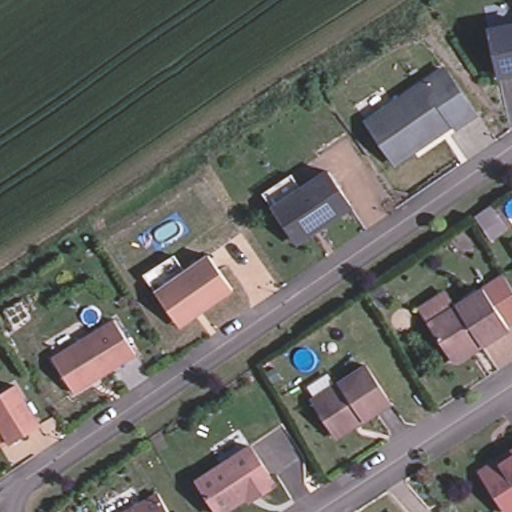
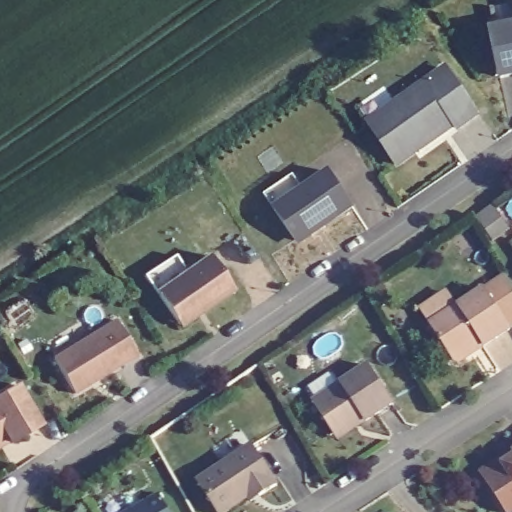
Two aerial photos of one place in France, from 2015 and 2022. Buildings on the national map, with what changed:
unchanged [(505,73),(495,26),(512,23),(512,72),(505,73)]
unchanged [(450,66),(481,111),(462,125),(458,121),(401,160),(372,119),(450,66)]
unchanged [(311,239),(304,237),(283,206),(273,191),(302,172),(312,186),(338,168),(362,204),(333,223),(321,232),(311,239)]
unchanged [(187,319),(166,290),(154,273),(185,253),(197,269),(220,253),(243,287),(205,314),(190,324),(187,319)]
unchanged [(458,364),(451,362),(428,327),(483,292),(510,331),(482,348),(470,357),(458,364)]
unchanged [(120,318),(142,353),(80,391),(58,357),(120,318)]
unchanged [(372,363),(397,401),(370,419),(366,413),(356,418),(357,421),(338,432),(317,398),(345,380),(372,363)]
unchanged [(0,399),(26,383),(51,424),(22,442),(19,438),(11,443),(0,450),(0,399)]
unchanged [(252,490),(224,508),(202,474),(256,439),(282,478),(265,489),(256,494),(252,490)]
unchanged [(485,469),(505,456),(512,452),(512,510),(485,469)]
unchanged [(176,512),(129,512),(165,492),(176,512)]
unchanged [(407,512),(401,512),(405,509),(407,512)]

